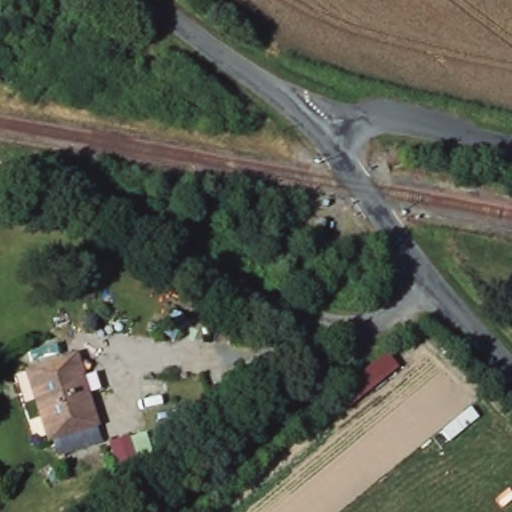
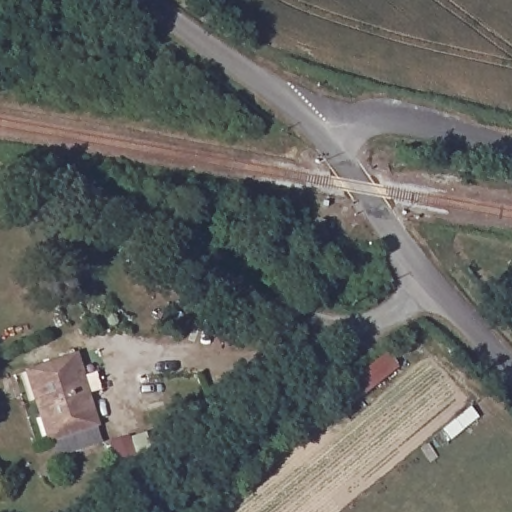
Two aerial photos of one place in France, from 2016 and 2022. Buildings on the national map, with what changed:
unchanged [(186,316),(175,339),(162,334),(174,310),(186,316)]
unchanged [(66,313),(70,322),(57,326),(54,318),(66,313)]
unchanged [(365,393),(354,378),(387,352),(398,366),(365,393)]
unchanged [(75,355),(97,425),(50,441),(27,371),(75,355)]
unchanged [(470,406),(481,419),(465,432),(454,419),(470,406)]

